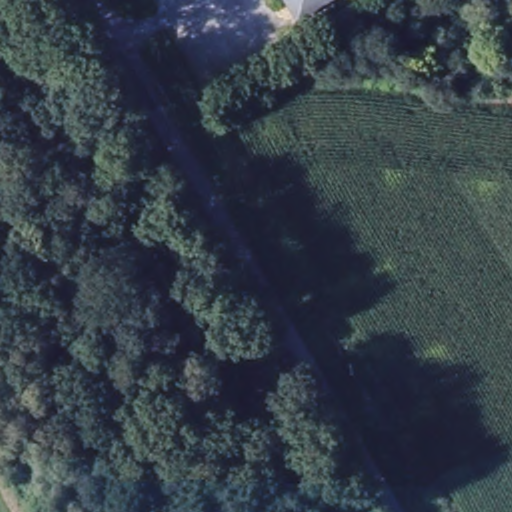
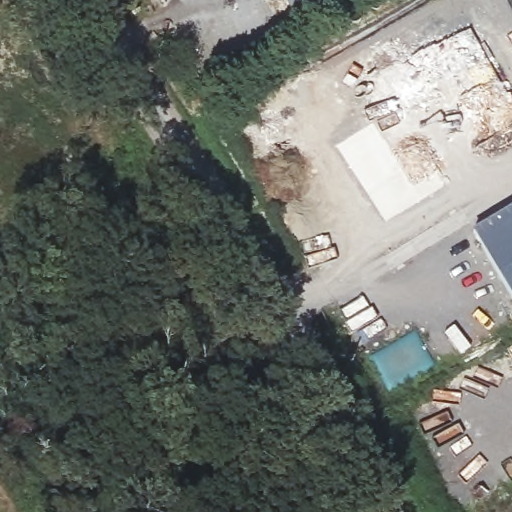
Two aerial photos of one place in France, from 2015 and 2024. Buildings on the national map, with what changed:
unchanged [(300,22),(287,0),(337,0),(300,22)]
new [(512,205),(512,298),(470,229),(512,205)]

